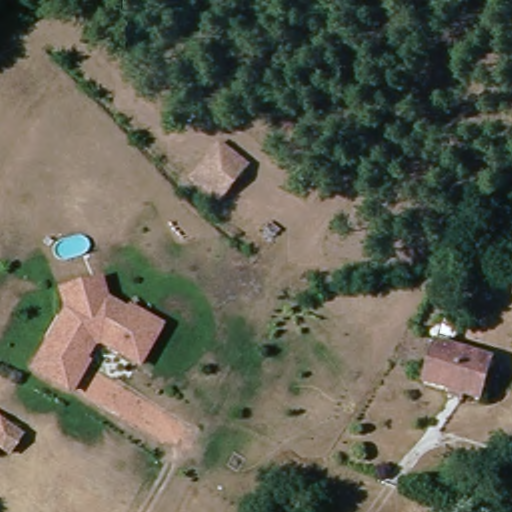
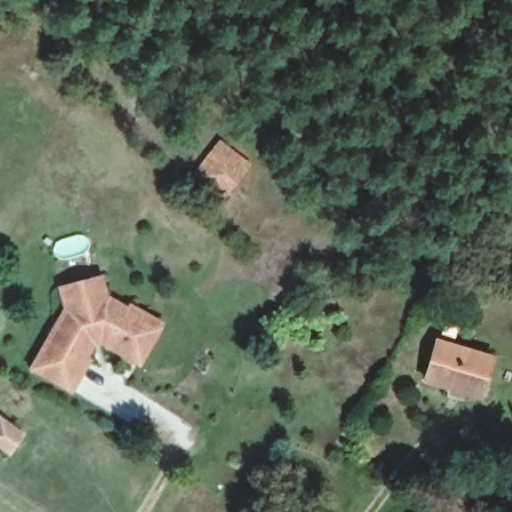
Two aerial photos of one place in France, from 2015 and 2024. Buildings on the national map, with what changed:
unchanged [(220,202),(191,181),(221,141),(250,162),(220,202)]
unchanged [(90,358),(74,387),(36,367),(54,337),(70,307),(70,305),(65,287),(104,276),(110,296),(131,308),(134,303),(155,315),(166,321),(149,351),(144,361),(131,355),(111,343),(106,341),(99,343),(90,358)]
unchanged [(476,400),(427,385),(439,346),(490,361),(476,400)]
unchanged [(0,438),(0,419),(22,425),(19,442),(0,438)]
unchanged [(310,512),(279,512),(283,501),(310,512)]

